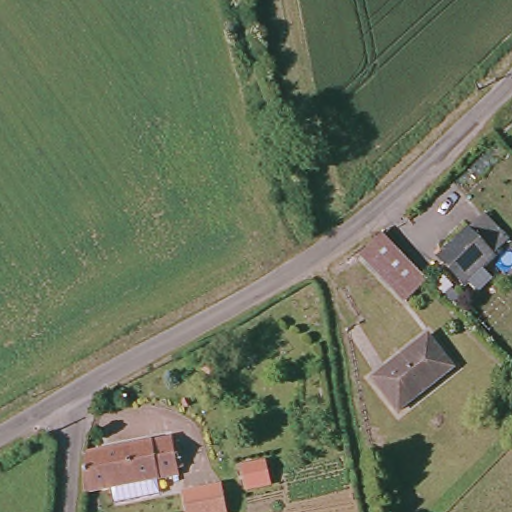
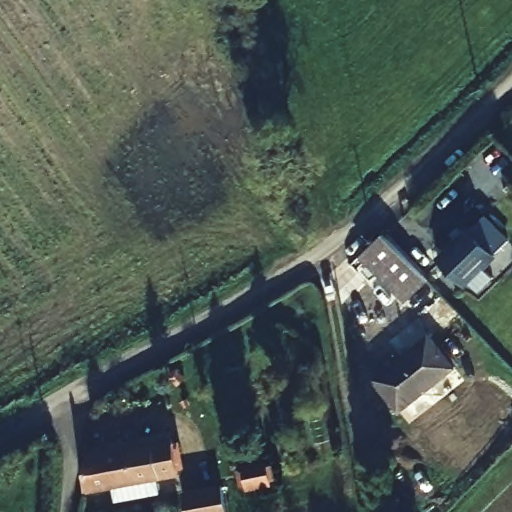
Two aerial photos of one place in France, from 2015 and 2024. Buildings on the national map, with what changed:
unchanged [(480,291),(472,283),(464,290),(435,260),(464,232),(467,235),(484,219),(509,245),(485,268),(494,278),(480,291)]
unchanged [(429,286),(406,308),(360,261),(384,243),(429,286)]
unchanged [(374,383),(425,338),(452,365),(400,412),(374,383)]
unchanged [(170,439),(177,475),(82,494),(87,455),(170,439)]
unchanged [(228,512),(186,512),(182,491),(223,483),(228,512)]

